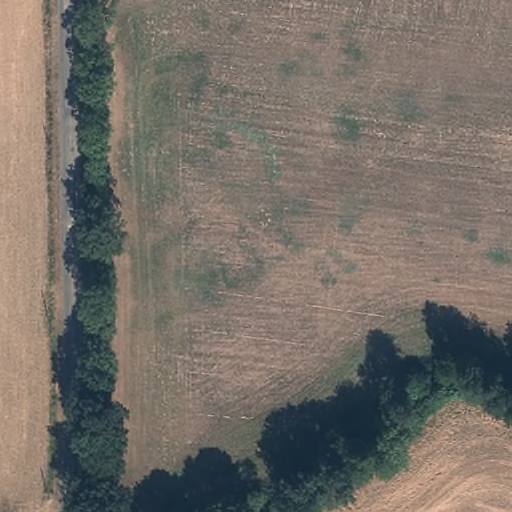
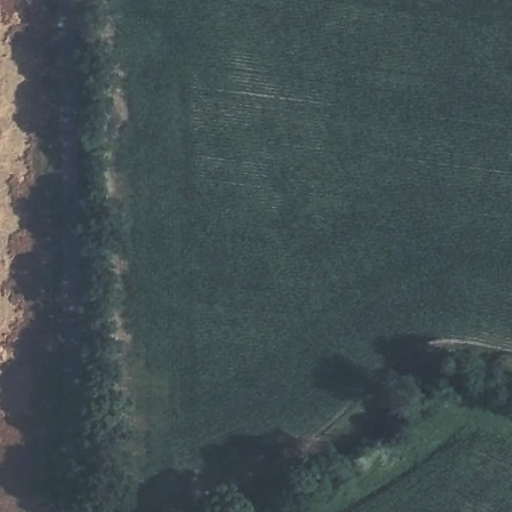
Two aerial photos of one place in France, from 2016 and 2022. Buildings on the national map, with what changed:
[]

